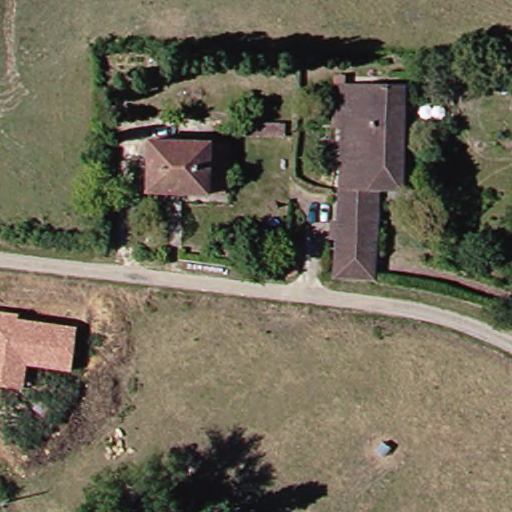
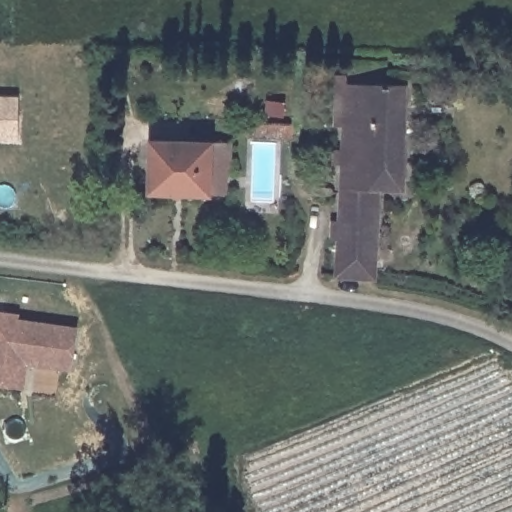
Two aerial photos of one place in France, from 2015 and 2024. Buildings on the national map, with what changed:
unchanged [(388,189),(389,279),(348,271),(350,136),(338,135),(339,83),(350,81),(385,84),(409,86),(408,190),(388,189)]
new [(19,98),(18,143),(0,143),(0,97),(19,98)]
unchanged [(288,144),(242,142),(243,126),(289,129),(288,144)]
unchanged [(237,143),(235,194),(155,193),(157,139),(237,143)]
unchanged [(20,314),(19,319),(78,327),(72,373),(27,367),(23,391),(0,387),(0,312),(20,314)]

